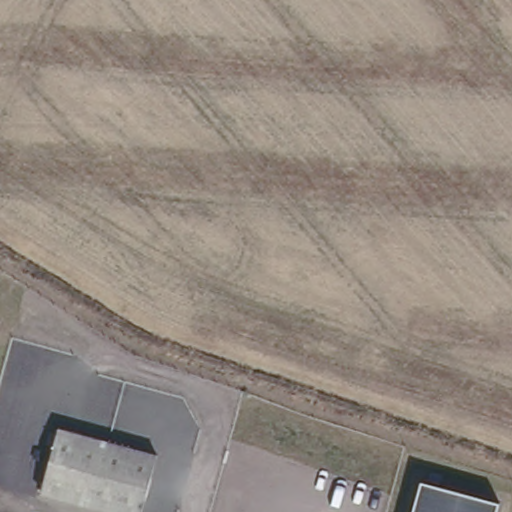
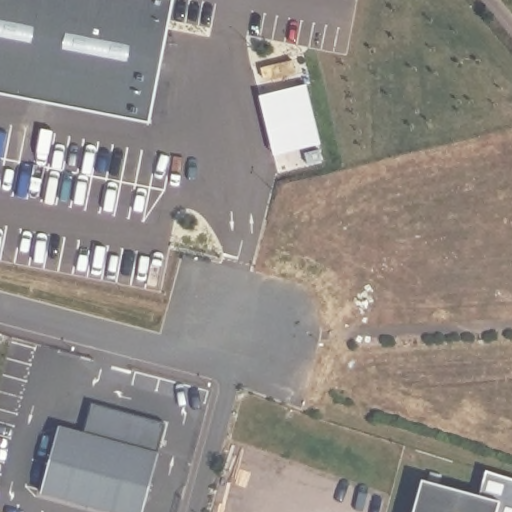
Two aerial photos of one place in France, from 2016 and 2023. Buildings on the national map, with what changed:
new [(0,91),(0,0),(170,0),(150,120),(0,91)]
new [(304,84),(319,142),(272,154),(258,95),(304,84)]
unchanged [(63,424),(83,429),(89,402),(161,422),(141,512),(117,512),(44,492),(63,424)]
unchanged [(423,482),(481,496),(487,471),(512,479),(512,512),(415,512),(423,482)]

